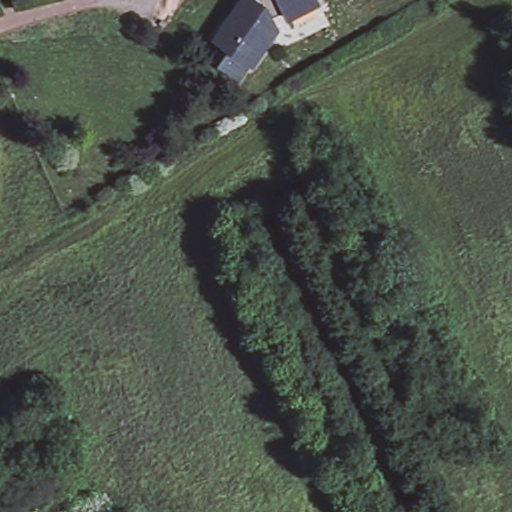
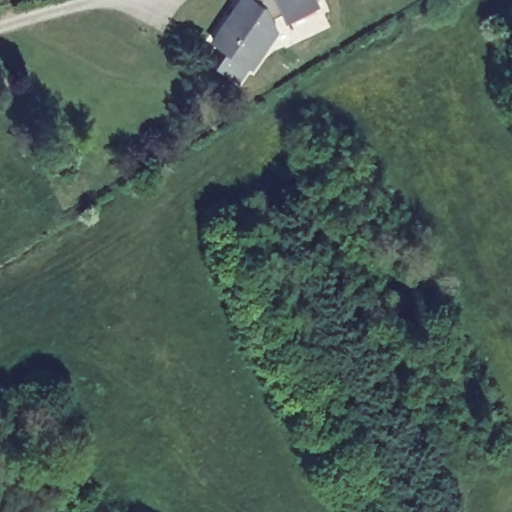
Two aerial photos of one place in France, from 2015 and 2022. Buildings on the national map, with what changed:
unchanged [(318,1),(288,16),(284,8),(273,14),(278,26),(253,63),(248,61),(238,76),(219,62),(228,48),(214,36),(239,0),(318,0),(318,1)]

